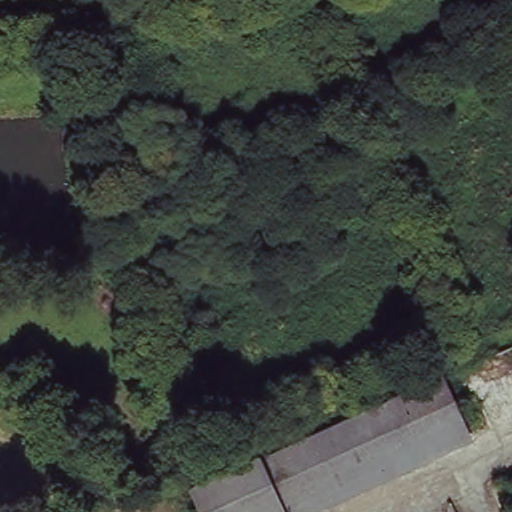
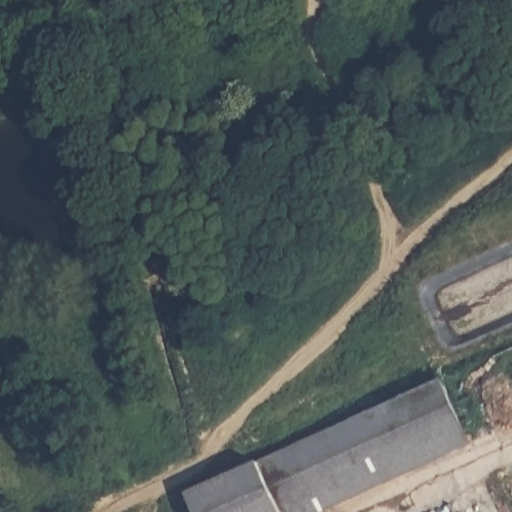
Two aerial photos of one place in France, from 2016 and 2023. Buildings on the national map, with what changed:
unchanged [(332,512),(196,512),(187,491),(444,379),(475,449),(332,512)]

